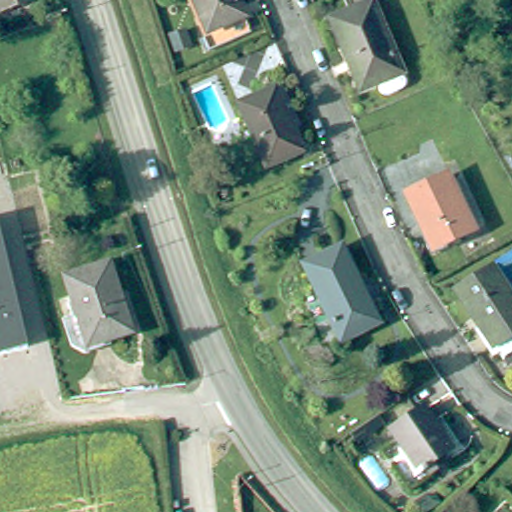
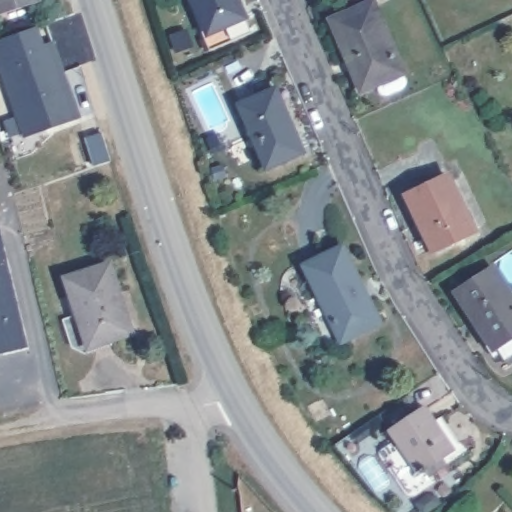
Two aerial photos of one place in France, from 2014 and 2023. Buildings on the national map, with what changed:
unchanged [(0,0),(36,0),(38,3),(0,15),(0,0)]
unchanged [(208,41),(201,21),(206,19),(198,0),(239,0),(249,25),(208,41)]
unchanged [(334,34),(346,27),(333,0),(361,0),(399,80),(363,98),(334,34)]
new [(79,119),(24,137),(3,72),(17,68),(13,55),(53,42),(79,119)]
unchanged [(238,105),(271,90),(300,151),(264,166),(238,105)]
unchanged [(470,229),(429,248),(404,190),(444,172),(470,229)]
unchanged [(28,350),(0,356),(0,220),(28,350)]
unchanged [(358,281),(320,297),(305,261),(344,246),(358,281)]
unchanged [(127,331),(84,338),(66,270),(110,260),(127,331)]
unchanged [(504,356),(460,289),(491,267),(512,299),(512,351),(504,356)]
unchanged [(373,320),(336,335),(320,297),(358,281),(373,320)]
unchanged [(452,450),(419,470),(392,430),(426,409),(452,450)]

